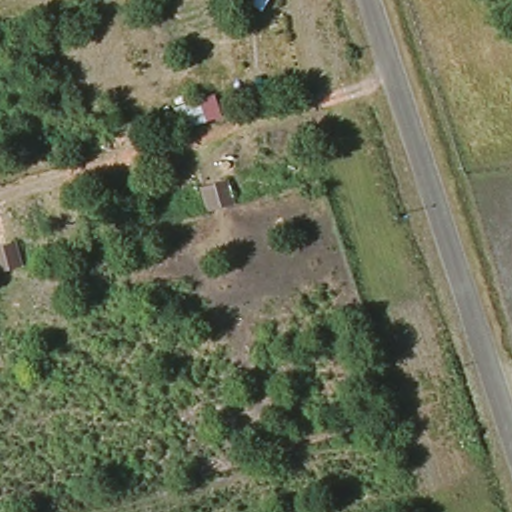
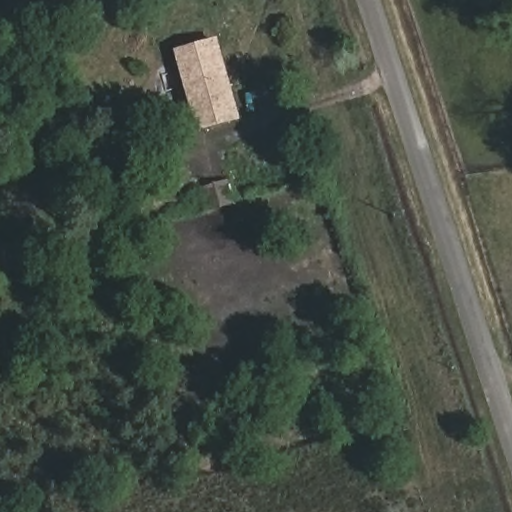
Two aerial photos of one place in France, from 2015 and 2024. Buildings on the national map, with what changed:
new [(203,126),(199,112),(182,50),(219,39),(237,101),(241,116),(203,126)]

